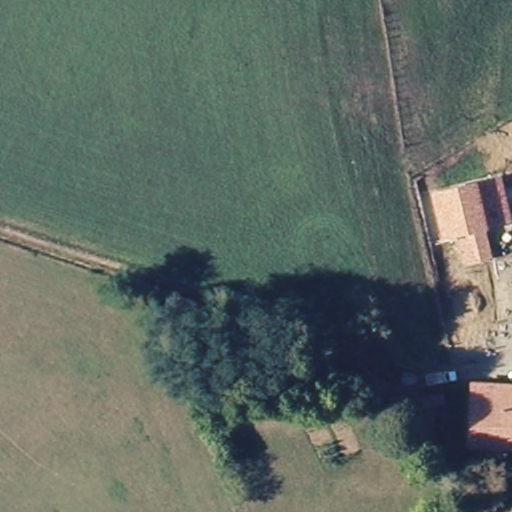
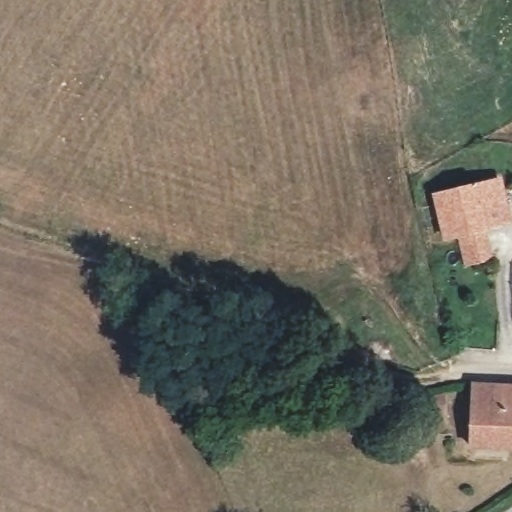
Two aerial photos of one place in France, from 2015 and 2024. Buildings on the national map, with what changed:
unchanged [(512,218),(512,224),(485,231),(492,260),(467,266),(460,238),(442,242),(432,193),(501,176),(512,218)]
unchanged [(480,446),(482,382),(512,383),(512,447),(480,446)]
unchanged [(413,409),(414,391),(441,391),(440,410),(413,409)]

